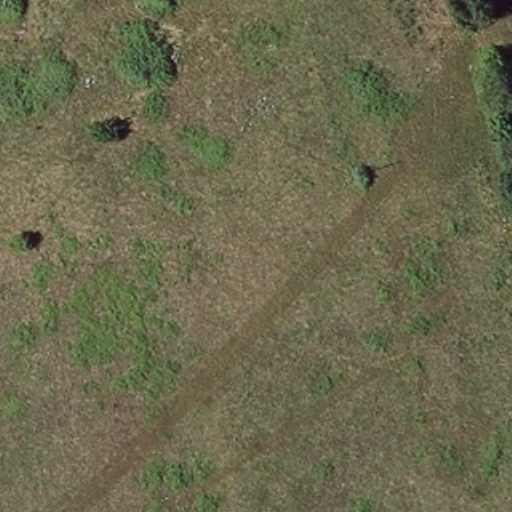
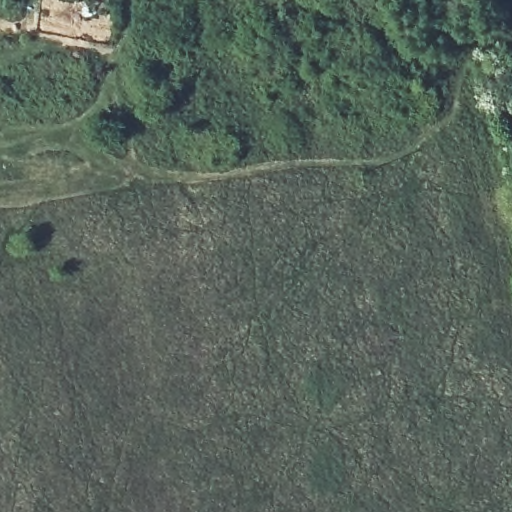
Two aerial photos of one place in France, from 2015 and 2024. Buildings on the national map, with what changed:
unchanged [(0,8),(0,0),(11,0),(10,9),(0,8)]

